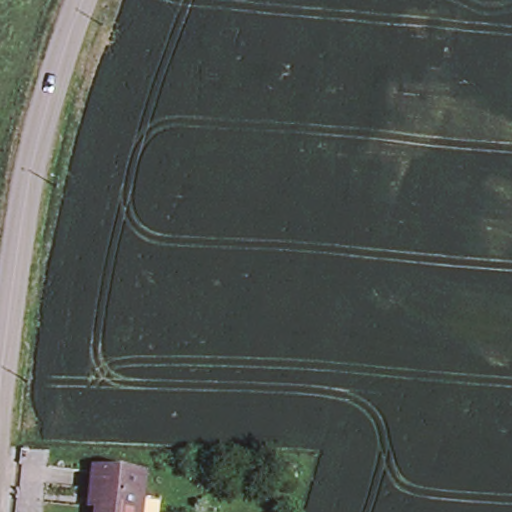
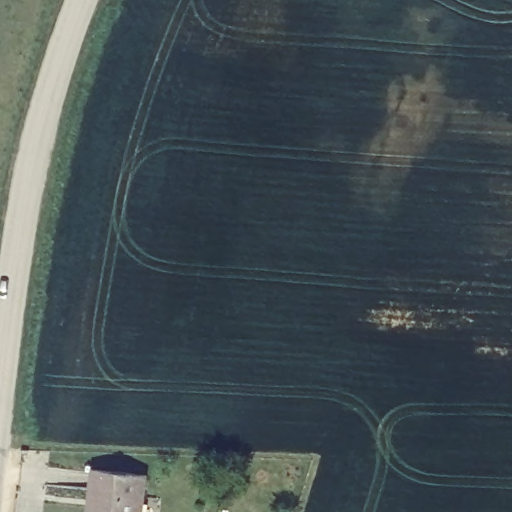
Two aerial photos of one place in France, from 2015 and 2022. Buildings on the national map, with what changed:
unchanged [(99,512),(100,494),(93,494),(95,471),(146,476),(142,512),(99,512)]

